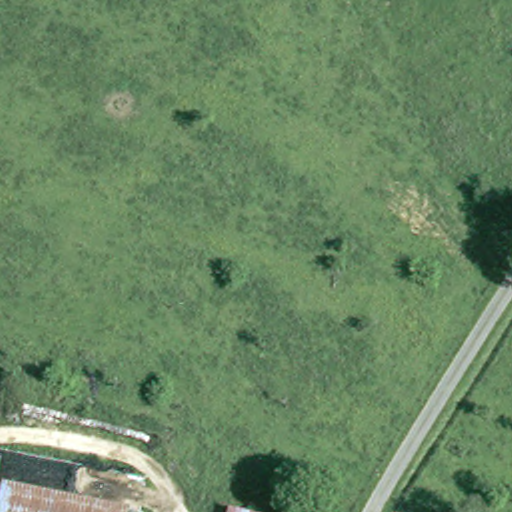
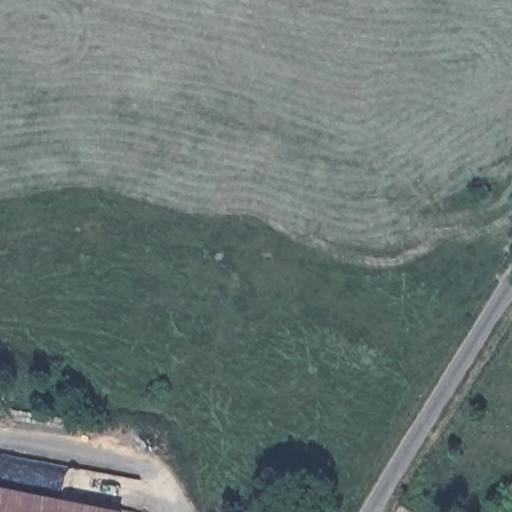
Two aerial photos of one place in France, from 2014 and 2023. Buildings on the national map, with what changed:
unchanged [(120,512),(0,512),(0,509),(5,487),(120,512)]

